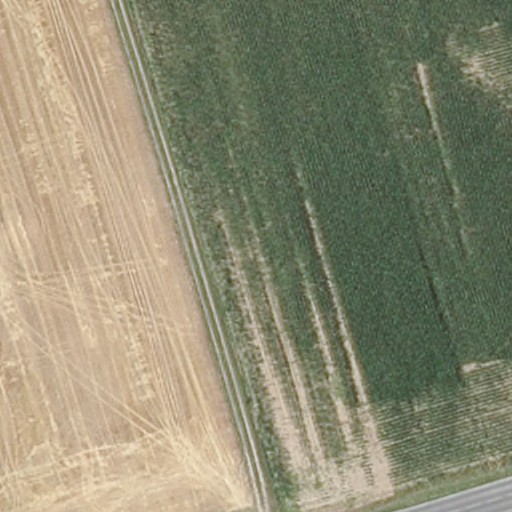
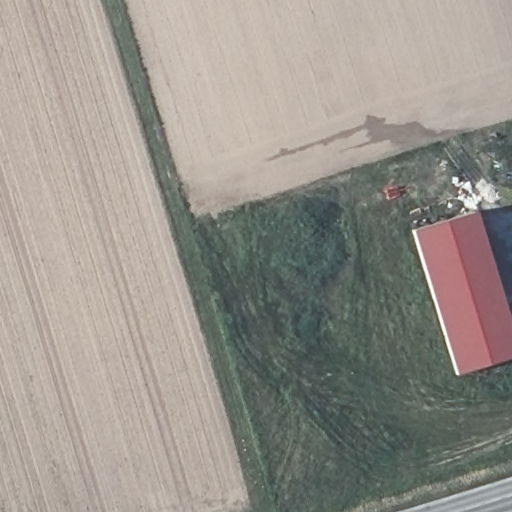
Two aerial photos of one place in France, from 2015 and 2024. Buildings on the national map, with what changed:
new [(473,209),(512,343),(512,354),(455,371),(412,227),(473,209)]

